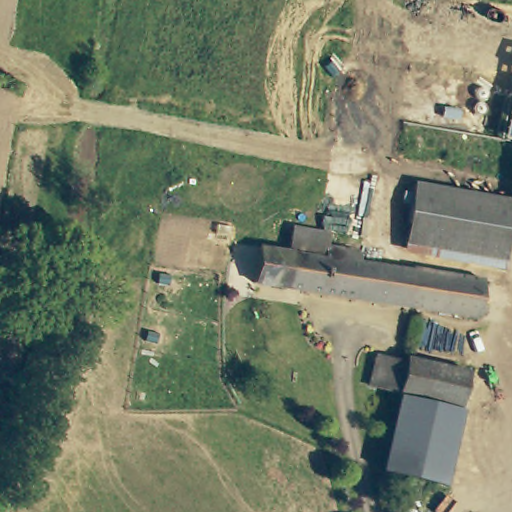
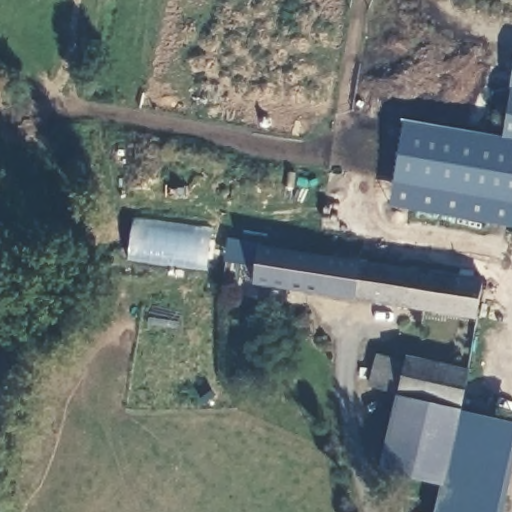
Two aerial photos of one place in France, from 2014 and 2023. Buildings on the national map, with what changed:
unchanged [(503,138),(512,76),(512,140),(503,138)]
new [(512,228),(389,205),(402,122),(503,138),(512,140),(512,226),(512,228)]
unchanged [(260,247),(290,252),(293,233),(294,225),(331,231),(329,239),(329,243),(361,249),(359,262),(411,270),(412,268),(483,280),(477,318),(254,283),(260,247)]
unchanged [(470,371),(461,409),(444,483),(383,469),(400,392),(371,385),(378,355),(407,362),(409,357),(470,371)]
new [(503,512),(434,512),(440,482),(444,483),(461,411),(512,423),(512,471),(503,512)]

